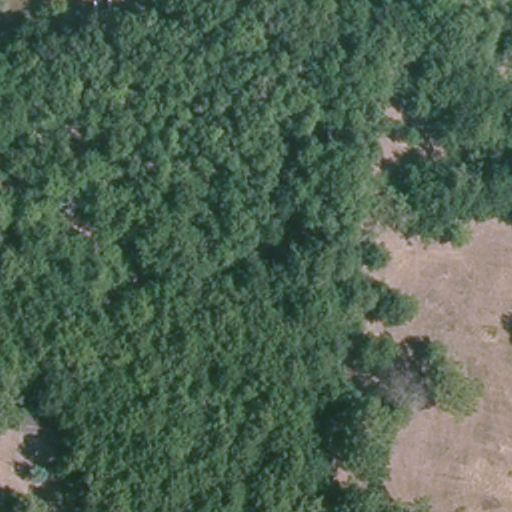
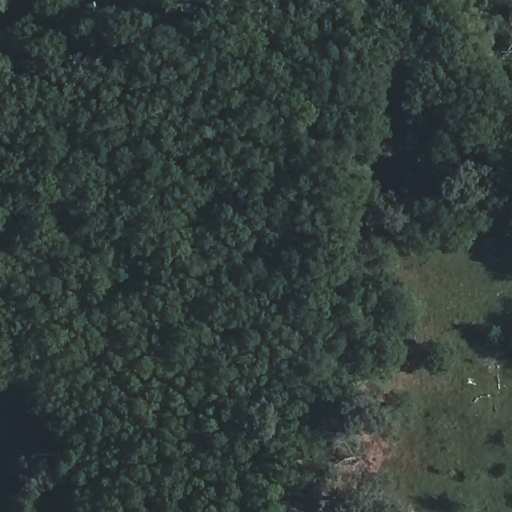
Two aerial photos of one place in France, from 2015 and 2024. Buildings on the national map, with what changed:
unchanged [(24,405),(51,408),(49,436),(19,434),(24,405)]

